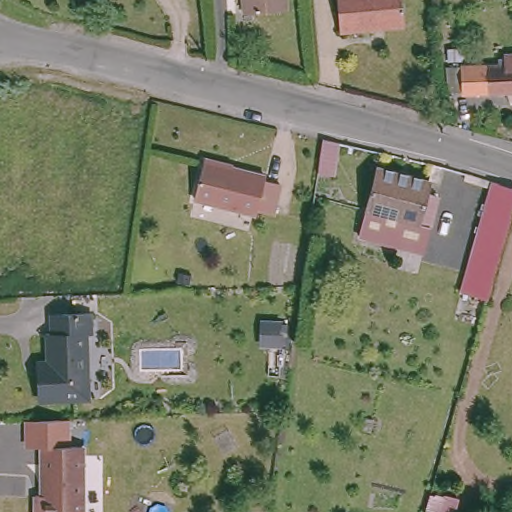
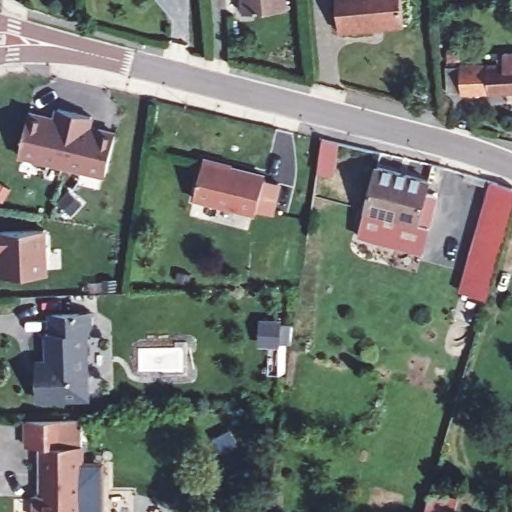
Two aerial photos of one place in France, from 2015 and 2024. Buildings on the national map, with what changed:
unchanged [(245,9),(244,0),(285,0),(285,6),(245,9)]
unchanged [(337,26),(335,0),(400,0),(402,20),(337,26)]
unchanged [(460,56),(449,56),(449,45),(460,45),(460,56)]
unchanged [(471,89),(464,89),(449,89),(448,70),(447,63),(487,61),(499,61),(499,56),(505,56),(505,49),(512,48),(512,97),(509,97),(507,87),(471,89)]
new [(30,113),(57,119),(59,109),(92,116),(90,127),(117,134),(106,176),(20,156),(30,113)]
unchanged [(335,163),(320,160),(323,139),(338,143),(335,163)]
unchanged [(278,180),(270,212),(255,208),(254,212),(194,196),(202,158),(263,173),(262,176),(278,180)]
unchanged [(365,211),(377,166),(430,180),(427,191),(438,194),(429,226),(422,254),(359,238),(365,211)]
unchanged [(512,190),(512,209),(487,298),(460,290),(490,183),(512,190)]
new [(45,230),(48,275),(4,277),(2,250),(0,250),(0,232),(45,230)]
unchanged [(52,363),(52,334),(57,334),(57,317),(94,314),(95,334),(90,334),(92,398),(44,400),(42,374),(42,363),(52,363)]
unchanged [(280,344),(261,343),(262,322),(280,323),(280,344)]
unchanged [(52,415),(74,414),(74,443),(89,443),(89,512),(40,512),(40,493),(47,493),(47,445),(32,445),(32,416),(52,415)]
unchanged [(459,498),(455,512),(424,512),(430,490),(459,498)]

